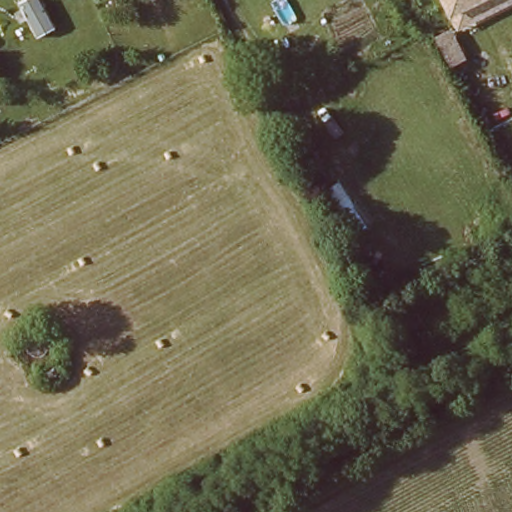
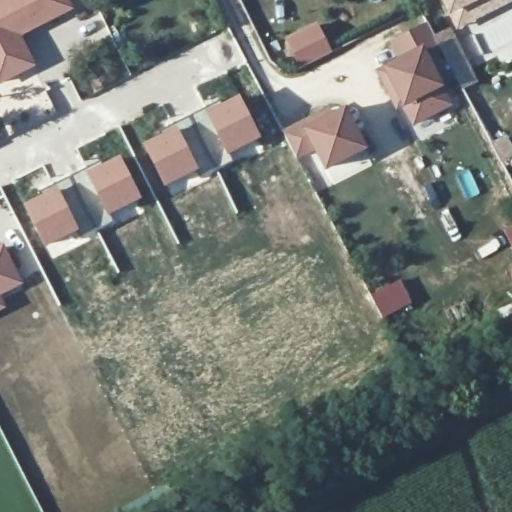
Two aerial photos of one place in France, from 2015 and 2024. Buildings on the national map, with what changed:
new [(75,9),(22,36),(36,65),(0,85),(0,0),(70,0),(75,9)]
unchanged [(453,32),(437,0),(506,0),(453,32)]
new [(322,21),(336,47),(298,65),(285,40),(322,21)]
new [(460,103),(415,125),(386,65),(396,59),(386,40),(423,23),(460,103)]
new [(371,148),(330,172),(319,151),(298,162),(282,132),(305,119),(309,128),(350,106),(371,148)]
new [(175,124),(198,171),(162,189),(140,144),(175,124)]
new [(120,155),(141,199),(106,217),(83,172),(120,155)]
new [(56,186),(80,231),(44,250),(21,205),(56,186)]
new [(3,243),(23,285),(1,296),(7,308),(0,311),(0,244),(3,243)]
unchanged [(18,347),(20,345),(21,342),(24,340),(27,338),(30,337),(33,337),(37,337),(40,337),(44,339),(48,341),(52,346),(54,350),(55,354),(55,357),(54,362),(52,366),(50,369),(47,372),(44,374),(40,375),(36,376),(32,376),(29,375),(25,374),(22,371),(20,369),(18,365),(16,361),(16,357),(16,354),(16,350),(18,347)]
unchanged [(60,387),(63,393),(54,397),(51,391),(60,387)]

